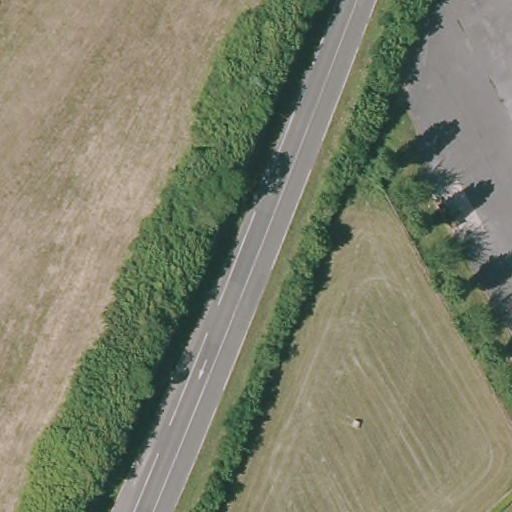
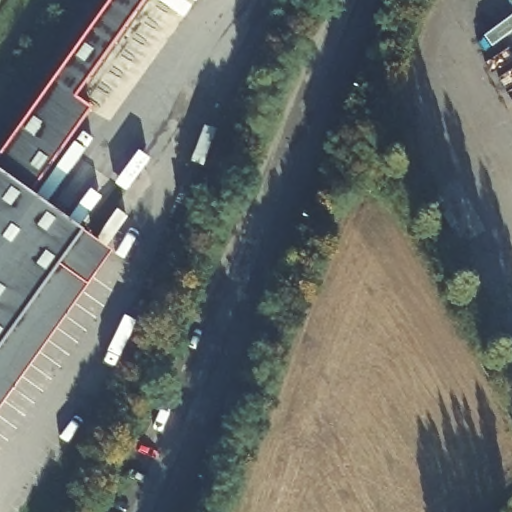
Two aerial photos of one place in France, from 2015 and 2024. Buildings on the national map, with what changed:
new [(27,185),(80,233),(63,258),(82,271),(0,384),(0,149),(107,0),(155,0),(27,185)]
new [(63,258),(80,233),(108,253),(0,404),(0,384),(82,271),(63,258)]

